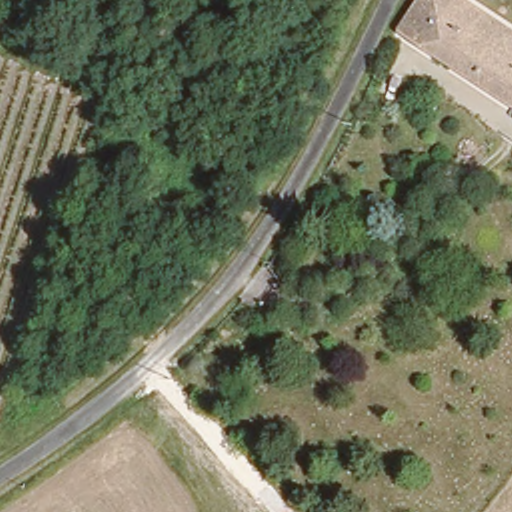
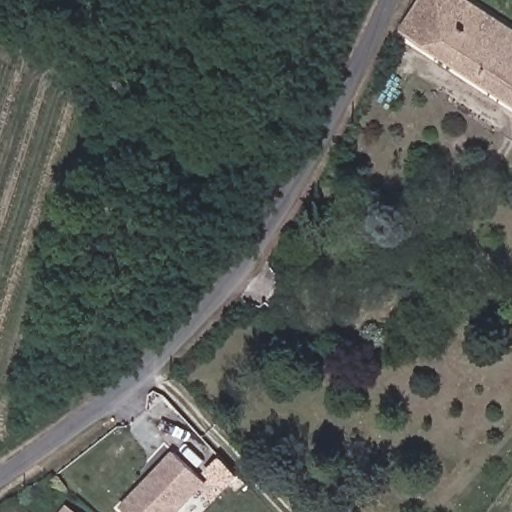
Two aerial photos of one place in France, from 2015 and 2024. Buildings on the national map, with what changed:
unchanged [(74,0),(78,0),(77,1),(74,0)]
unchanged [(399,33),(418,0),(456,0),(512,36),(512,102),(399,33)]
new [(180,512),(129,512),(123,506),(176,450),(208,484),(180,512)]
new [(66,506),(74,512),(62,512),(66,506)]

